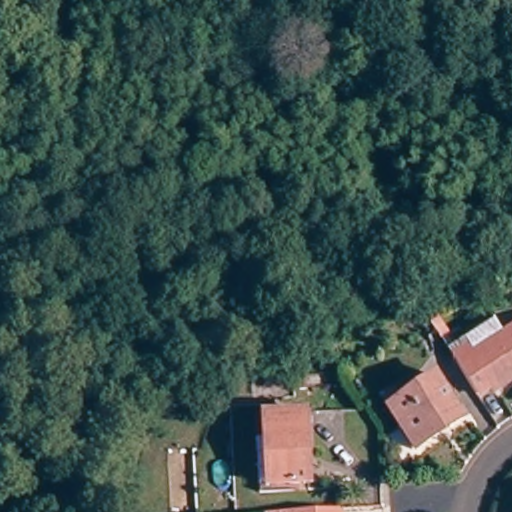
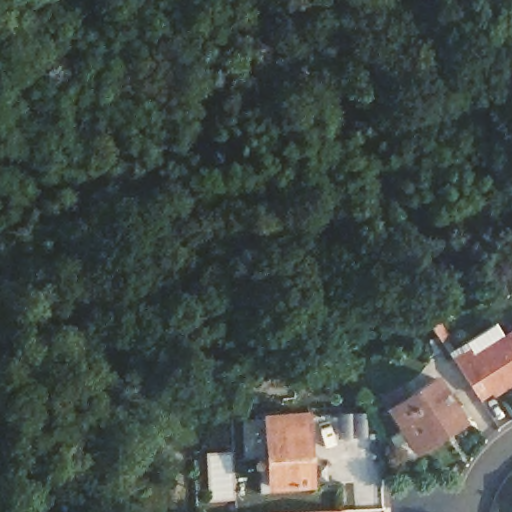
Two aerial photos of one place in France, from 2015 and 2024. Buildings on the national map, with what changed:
unchanged [(492,395),(489,391),(478,399),(452,361),(466,352),(470,359),(512,329),(512,382),(492,395)]
unchanged [(392,429),(396,427),(397,426),(383,408),(433,376),(461,418),(450,425),(433,436),(418,446),(407,453),(392,429)]
unchanged [(265,488),(261,417),(303,413),(306,487),(265,488)]
unchanged [(341,511),(341,512),(321,512),(341,511)]

